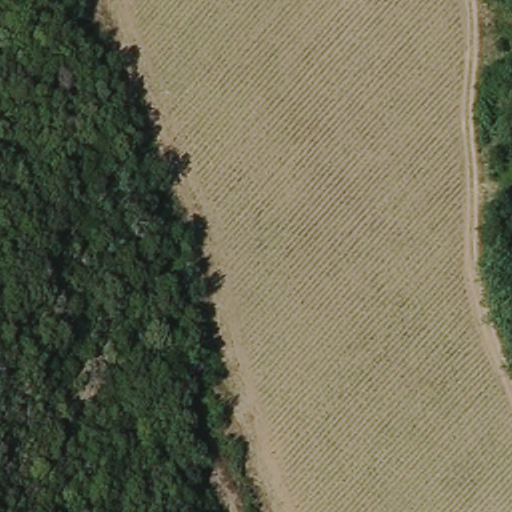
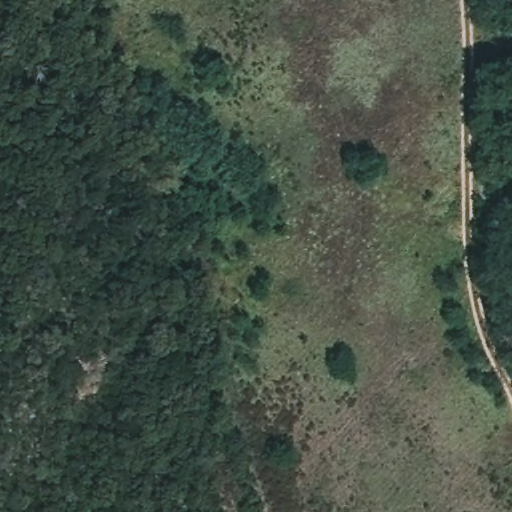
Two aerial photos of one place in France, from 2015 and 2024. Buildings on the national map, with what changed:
[]

